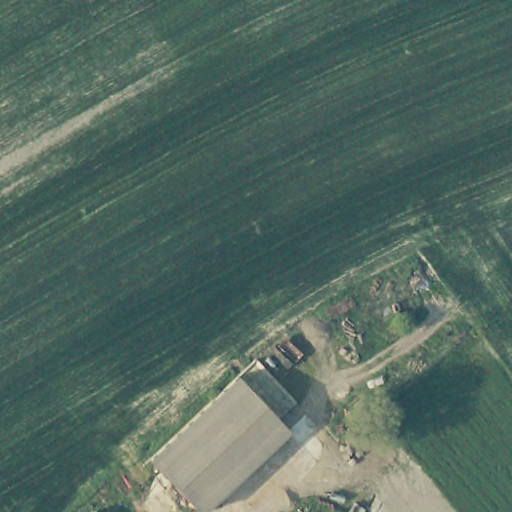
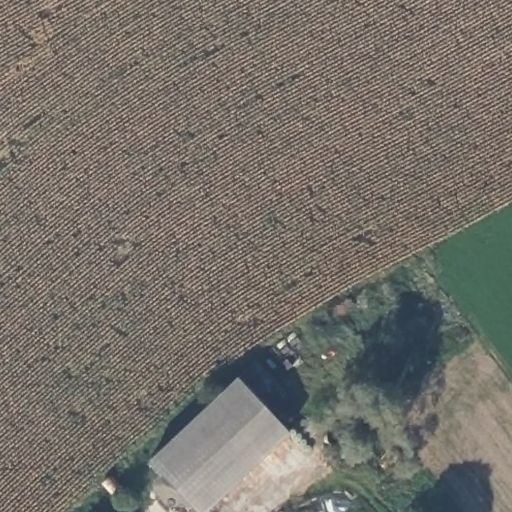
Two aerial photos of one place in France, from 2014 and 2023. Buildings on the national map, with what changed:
unchanged [(234,369),(286,425),(199,512),(146,454),(234,369)]

